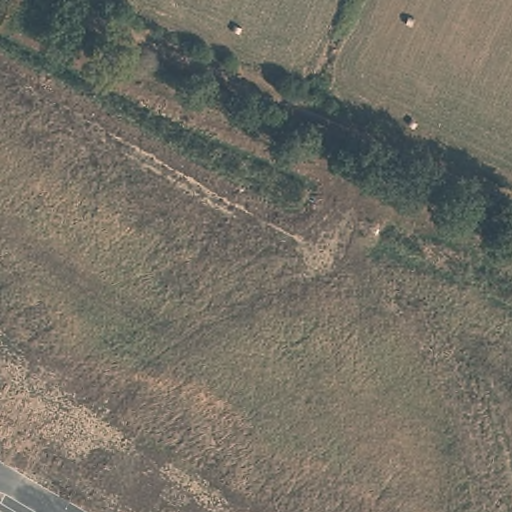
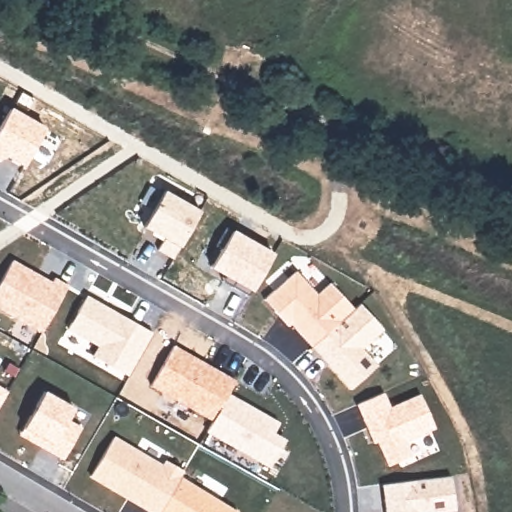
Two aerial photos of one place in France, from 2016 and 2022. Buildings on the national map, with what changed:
new [(10,107),(46,127),(24,167),(4,156),(1,162),(0,162),(0,125),(10,107)]
new [(164,240),(143,227),(164,190),(201,210),(181,246),(174,260),(157,250),(164,240)]
new [(13,260),(53,281),(55,277),(69,285),(43,333),(0,309),(0,283),(13,260)]
new [(295,270),(317,295),(330,283),(356,310),(313,348),(292,325),(289,327),(264,300),(295,270)]
new [(87,295),(154,331),(129,377),(92,356),(98,346),(68,330),(87,295)]
new [(356,310),(362,302),(402,346),(352,388),(313,348),(356,310)]
new [(174,345),(236,380),(228,393),(213,420),(151,386),(174,345)]
new [(9,390),(0,406),(0,386),(9,390)]
new [(23,427),(44,390),(74,407),(67,419),(82,427),(64,460),(19,435),(23,427)]
new [(376,442),(373,444),(356,404),(384,392),(391,406),(420,394),(436,427),(405,440),(412,455),(388,466),(376,442)]
new [(213,420),(228,393),(280,421),(274,432),(287,440),(271,468),(207,433),(213,420)]
new [(163,464),(164,460),(184,472),(160,512),(149,512),(89,477),(114,435),(163,464)]
new [(456,511),(449,512),(386,512),(381,485),(451,475),(456,511)]

